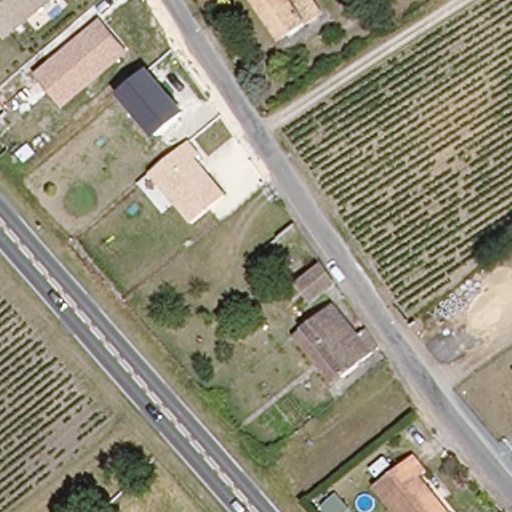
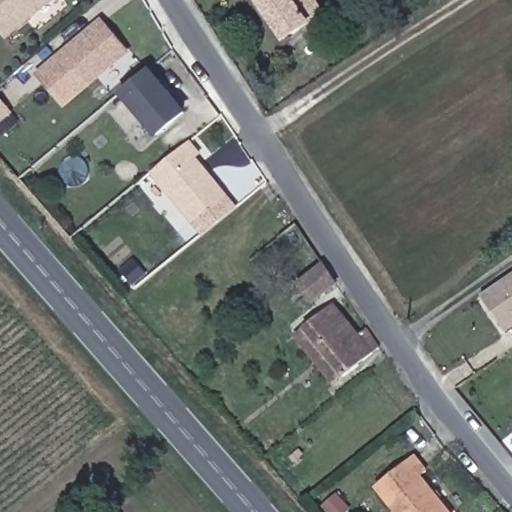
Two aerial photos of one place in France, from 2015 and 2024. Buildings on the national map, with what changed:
unchanged [(5,39),(0,33),(0,0),(51,0),(5,39)]
unchanged [(248,0),(316,0),(321,7),(282,34),(276,39),(254,9),(248,0)]
unchanged [(36,73),(100,18),(130,53),(64,109),(36,73)]
unchanged [(156,137),(120,93),(151,67),(172,93),(174,91),(189,112),(156,137)]
unchanged [(192,223),(150,173),(190,140),(201,153),(197,157),(229,194),(192,223)]
unchanged [(301,329),(328,306),(337,314),(343,309),(319,275),(290,299),(284,292),(314,267),(323,259),(352,302),(362,316),(351,325),(339,335),(350,325),(358,331),(366,324),(379,343),(345,370),(335,377),(292,336),(301,329)]
new [(480,295),(512,274),(512,327),(504,332),(480,295)]
unchanged [(420,469),(414,474),(444,512),(394,512),(371,484),(409,455),(420,469)]

